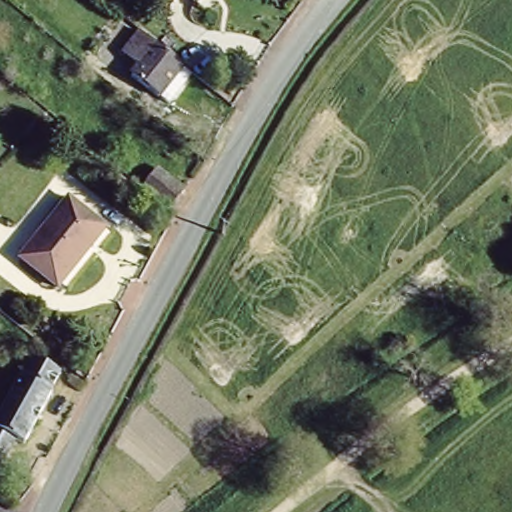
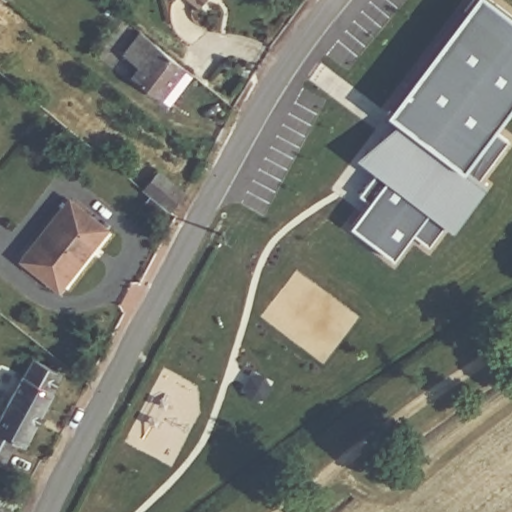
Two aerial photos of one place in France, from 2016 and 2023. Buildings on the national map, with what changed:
unchanged [(196,0),(200,0),(198,2),(196,0)]
new [(472,0),(492,0),(512,15),(512,104),(494,128),(508,139),(478,180),(484,184),(455,223),(449,218),(429,244),(413,232),(394,257),(351,225),(369,200),(359,193),(380,166),(377,163),(380,158),(366,148),(399,120),(388,111),(472,0)]
unchanged [(173,59),(190,72),(166,103),(156,95),(155,97),(129,76),(136,66),(120,54),(138,31),(173,59)]
unchanged [(160,168),(187,190),(171,209),(144,187),(160,168)]
unchanged [(67,199),(103,228),(55,289),(18,260),(67,199)]
unchanged [(18,375),(20,376),(29,359),(58,374),(48,392),(50,392),(22,446),(12,441),(0,465),(0,409),(18,375)]

